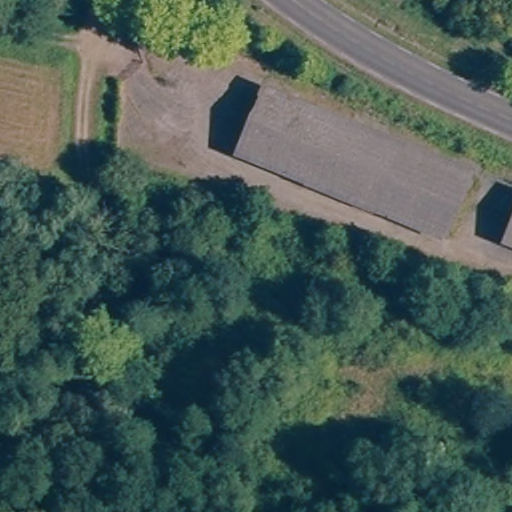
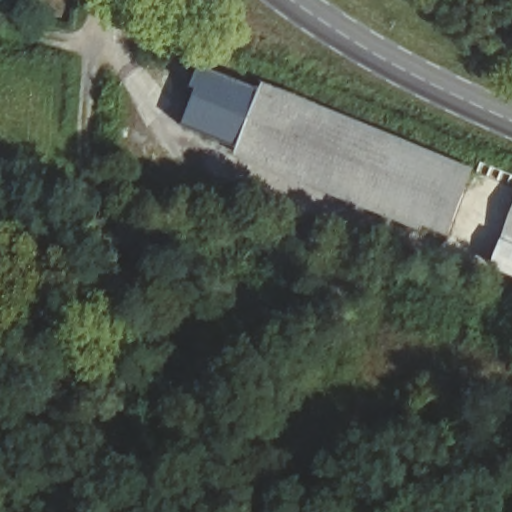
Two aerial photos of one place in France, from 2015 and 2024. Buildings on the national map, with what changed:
new [(238,150),(183,128),(198,90),(193,89),(202,69),(262,94),(238,150)]
unchanged [(238,150),(262,93),(470,180),(447,236),(238,150)]
unchanged [(512,230),(512,242),(508,240),(512,230)]

